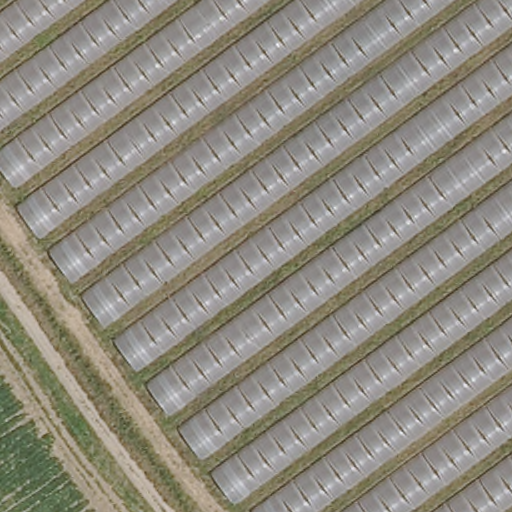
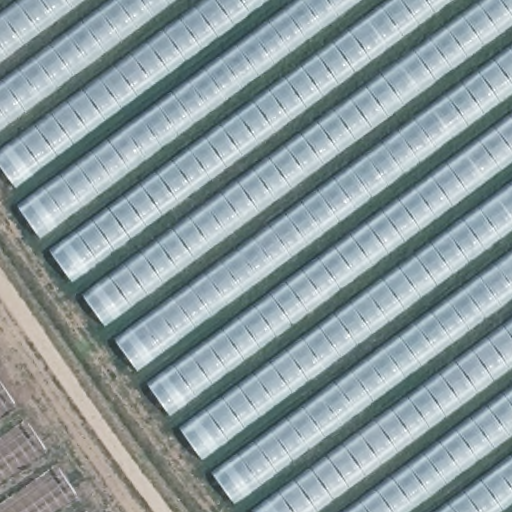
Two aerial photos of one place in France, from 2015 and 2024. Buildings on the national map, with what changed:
unchanged [(196,458),(13,195),(0,176),(0,0),(512,0),(512,512),(242,512),(196,458)]
new [(87,512),(0,512),(0,384),(87,512)]

